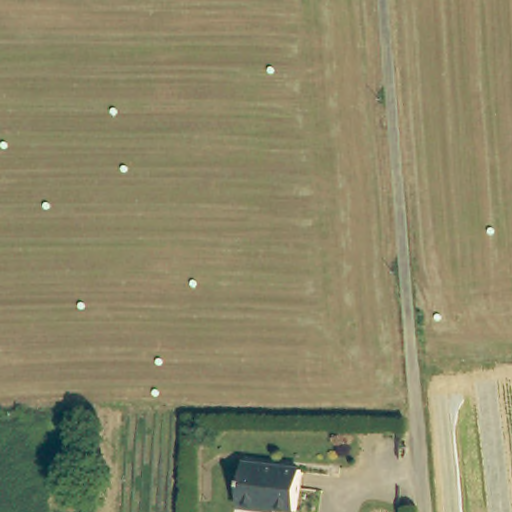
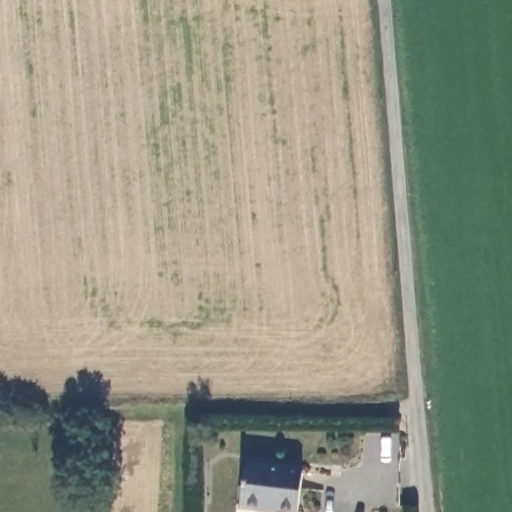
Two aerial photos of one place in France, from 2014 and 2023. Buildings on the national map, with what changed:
unchanged [(310,470),(306,510),(269,505),(268,509),(247,506),(251,462),(310,470)]

